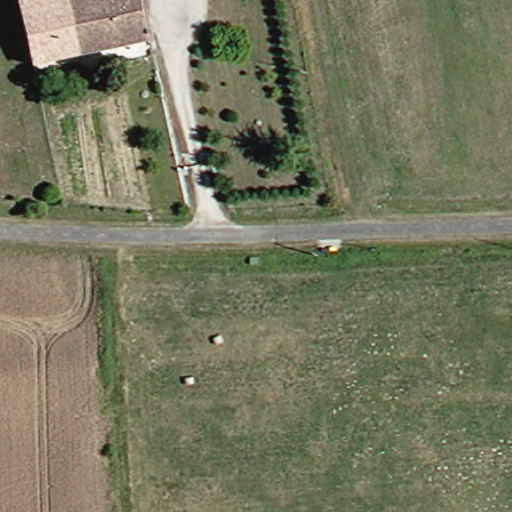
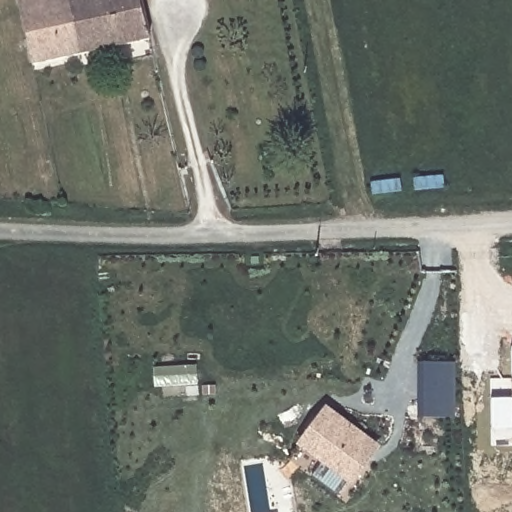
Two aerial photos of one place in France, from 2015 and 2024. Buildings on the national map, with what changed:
unchanged [(9,0),(135,0),(144,37),(25,70),(9,0)]
new [(490,400),(511,398),(510,347),(512,347),(512,431),(491,433),(490,400)]
new [(453,418),(417,418),(417,363),(455,364),(453,418)]
new [(350,487),(295,446),(324,406),(380,448),(350,487)]

